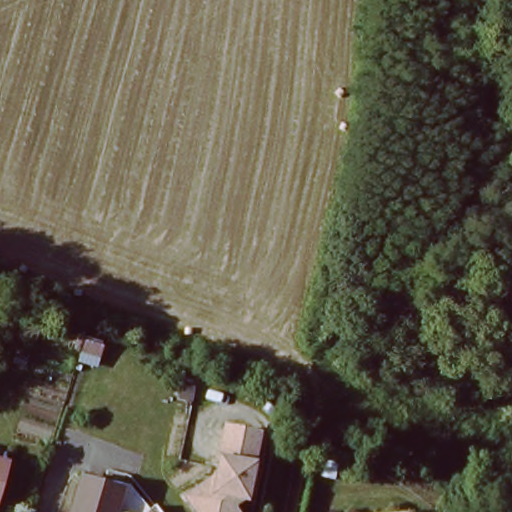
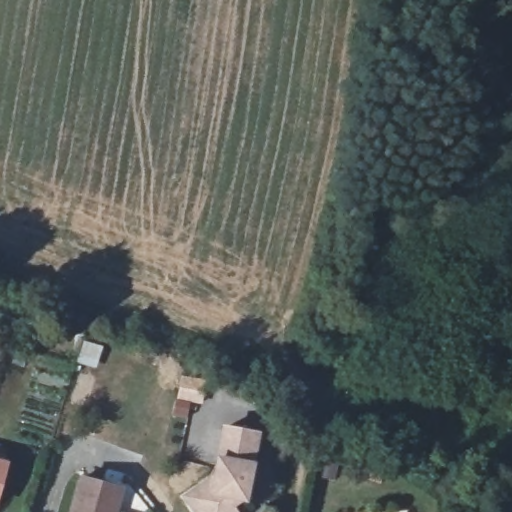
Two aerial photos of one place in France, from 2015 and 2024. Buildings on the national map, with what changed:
unchanged [(198,512),(219,490),(232,439),(264,446),(249,511),(237,509),(236,512),(198,512)]
unchanged [(1,510),(0,510),(0,458),(9,458),(1,510)]
unchanged [(112,512),(69,512),(80,477),(120,489),(112,512)]

